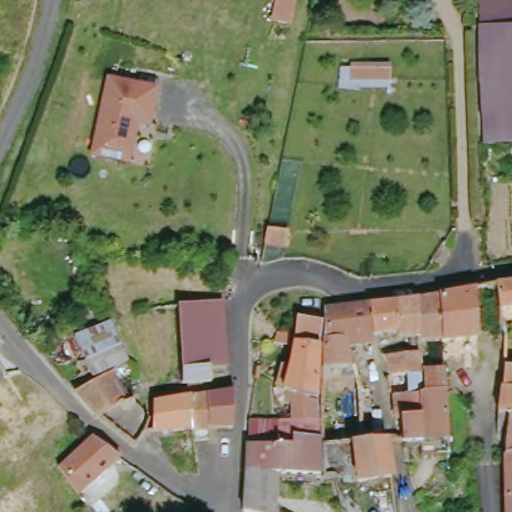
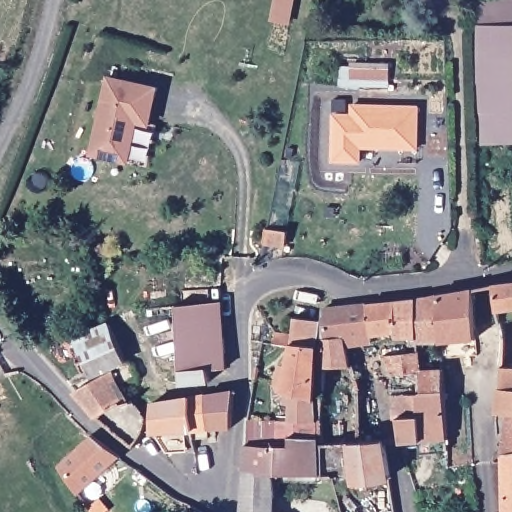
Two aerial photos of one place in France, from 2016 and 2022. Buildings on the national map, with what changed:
unchanged [(291,0),(304,3),(299,33),(283,30),(289,0),(291,0)]
unchanged [(477,0),(512,0),(512,151),(481,151),(477,0)]
new [(359,87),(359,90),(338,88),(339,66),(389,64),(389,86),(359,87)]
unchanged [(157,90),(150,125),(156,126),(148,167),(91,154),(109,80),(157,90)]
new [(419,150),(361,149),(360,164),(330,164),(330,114),(350,114),(350,104),(419,105),(419,150)]
unchanged [(273,230),(296,235),(294,250),(271,245),(273,230)]
unchanged [(512,308),(489,308),(489,288),(512,284),(512,308)]
unchanged [(318,317),(336,314),(391,303),(413,300),(435,297),(467,292),(466,314),(464,342),(463,362),(438,359),(436,338),(414,339),(394,339),(395,343),(365,346),(349,348),(363,449),(324,453),(318,322),(318,317)]
unchanged [(226,366),(209,366),(207,381),(181,381),(174,296),(218,295),(226,366)]
unchanged [(286,348),(269,346),(269,340),(269,334),(287,335),(289,322),(315,322),(316,349),(318,407),(289,399),(286,396),(278,393),(279,369),(286,371),(286,348)]
unchanged [(83,384),(78,377),(94,368),(81,346),(100,336),(108,349),(131,339),(138,358),(83,384)]
unchanged [(512,369),(488,370),(489,336),(512,336),(512,369)]
unchanged [(446,463),(422,462),(422,448),(404,448),(399,446),(398,424),(393,425),(386,373),(382,357),(415,353),(417,370),(438,368),(439,388),(446,449),(446,463)]
unchanged [(111,415),(88,388),(127,368),(134,381),(126,386),(134,401),(111,415)]
unchanged [(512,415),(499,414),(499,442),(487,442),(488,370),(512,369),(512,415)]
unchanged [(197,399),(227,399),(230,434),(202,437),(188,439),(148,438),(144,438),(148,406),(181,401),(197,399)]
unchanged [(293,443),(294,453),(280,454),(278,454),(280,429),(299,428),(298,412),(289,412),(289,399),(318,407),(320,442),(293,443)]
unchanged [(512,415),(512,512),(499,512),(499,442),(499,414),(512,415)]
unchanged [(67,494),(45,464),(85,438),(115,461),(67,494)]
unchanged [(247,457),(278,454),(280,454),(294,453),(293,443),(320,442),(323,482),(280,484),(281,512),(249,512),(247,457)]
unchanged [(387,446),(394,484),(368,488),(363,449),(387,446)]

